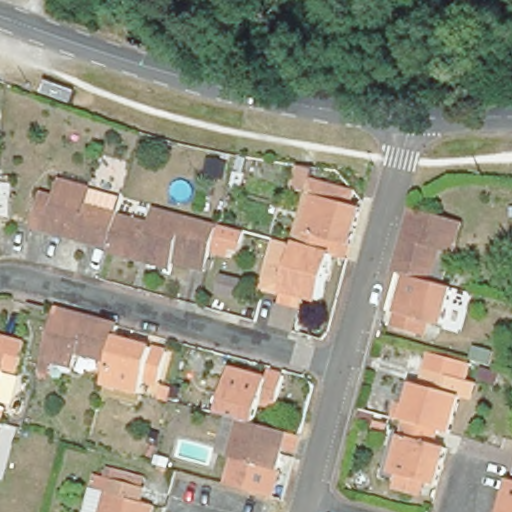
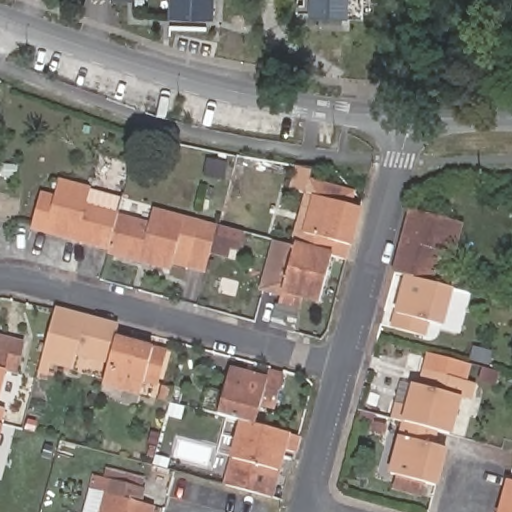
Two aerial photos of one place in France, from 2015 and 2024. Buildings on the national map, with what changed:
new [(172,19),(173,0),(214,0),(213,21),(172,19)]
new [(310,15),(311,0),(365,0),(364,16),(310,15)]
unchanged [(9,213),(0,213),(0,195),(1,177),(11,178),(9,213)]
unchanged [(120,211),(120,216),(147,223),(152,209),(201,223),(189,256),(175,254),(172,262),(169,268),(99,252),(99,249),(31,230),(45,181),(56,185),(61,177),(92,186),(87,204),(120,211)]
unchanged [(338,241),(334,256),(330,255),(300,247),(313,197),(360,210),(351,245),(338,241)]
unchanged [(461,229),(453,258),(439,254),(430,287),(405,280),(394,277),(411,215),(461,229)]
unchanged [(247,231),(240,260),(209,253),(204,269),(172,262),(175,254),(189,256),(201,223),(247,231)]
unchanged [(330,255),(318,303),(297,297),(294,306),(281,301),(282,294),(262,288),(276,240),(300,247),(330,255)]
unchanged [(430,287),(452,293),(442,329),(428,326),(424,340),(391,331),(405,280),(430,287)]
unchanged [(118,326),(115,337),(107,363),(75,354),(71,368),(40,358),(55,308),(118,326)]
unchanged [(115,337),(165,351),(155,385),(143,382),(139,395),(101,384),(107,363),(115,337)]
unchanged [(25,344),(21,358),(9,355),(5,372),(0,391),(0,338),(25,344)]
unchanged [(451,435),(447,434),(438,431),(417,425),(402,421),(390,417),(395,402),(406,404),(411,387),(418,389),(422,374),(428,353),(466,364),(460,385),(475,389),(471,403),(461,401),(452,434),(451,435)]
unchanged [(240,420),(219,414),(231,368),(266,377),(268,372),(280,375),(272,407),(259,404),(254,423),(240,420)]
unchanged [(499,372),(496,385),(483,382),(487,369),(499,372)]
unchanged [(156,397),(158,387),(169,389),(166,400),(156,397)]
unchanged [(240,420),(254,423),(299,435),(294,450),(284,448),(272,497),(238,488),(224,484),(240,420)]
unchanged [(389,485),(393,472),(389,471),(402,421),(417,425),(438,431),(434,446),(443,449),(433,483),(421,480),(417,493),(389,485)]
unchanged [(2,425),(0,432),(0,424),(2,425)]
unchanged [(144,488),(139,505),(152,509),(152,512),(99,512),(107,479),(144,488)]
unchanged [(501,481),(512,484),(512,512),(492,512),(501,480),(501,481)]

